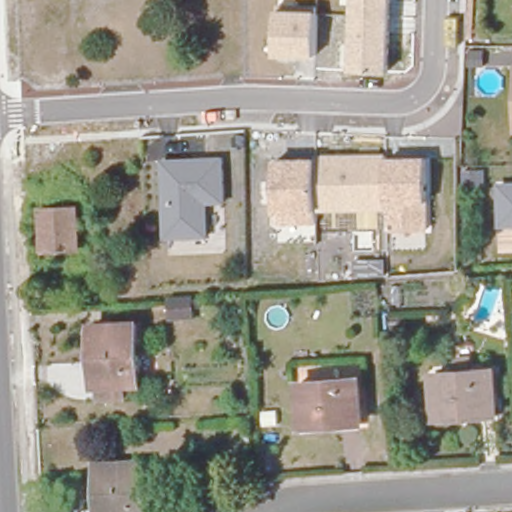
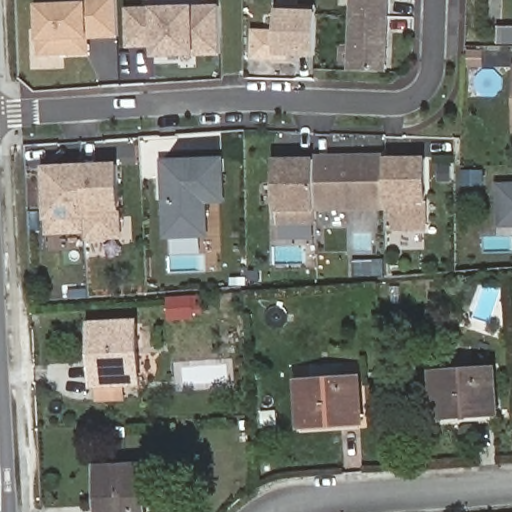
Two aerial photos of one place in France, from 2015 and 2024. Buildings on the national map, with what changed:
new [(90,40),(90,55),(39,55),(37,5),(87,3),(87,0),(116,0),(118,39),(90,40)]
unchanged [(350,70),(351,0),(392,0),(390,72),(350,70)]
new [(152,58),(152,47),(126,48),(125,6),(150,6),(195,4),(220,3),(220,5),(221,53),(221,56),(196,57),(152,58)]
unchanged [(316,10),(315,56),(275,55),(275,9),(316,10)]
unchanged [(316,157),(314,153),(385,152),(386,156),(428,155),(427,202),(429,201),(430,231),(387,231),(386,210),(317,211),(318,223),(275,225),(275,214),(276,212),(277,157),(316,157)]
unchanged [(225,203),(207,204),(209,237),(165,239),(161,159),(224,156),(225,203)]
new [(47,235),(46,219),(45,167),(119,163),(121,212),(122,239),(86,240),(86,233),(47,235)]
unchanged [(500,228),(499,182),(512,182),(512,228),(500,228)]
unchanged [(191,300),(192,317),(170,318),(169,302),(191,300)]
unchanged [(98,395),(97,380),(94,380),(91,321),(135,319),(139,378),(123,379),(124,393),(98,395)]
unchanged [(492,368),(496,413),(437,418),(433,373),(492,368)]
unchanged [(359,378),(361,423),(302,426),(300,382),(359,378)]
unchanged [(101,512),(99,469),(144,467),(146,512),(101,512)]

